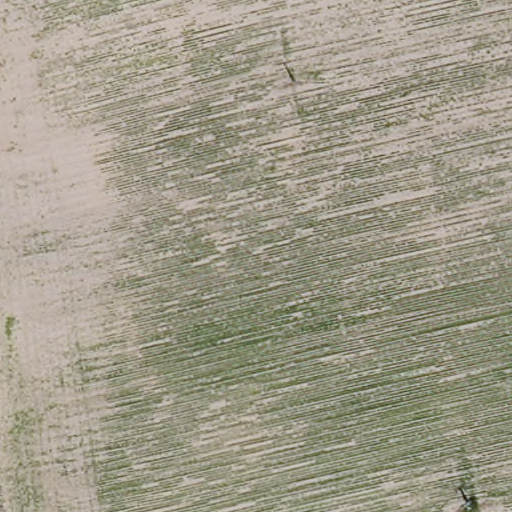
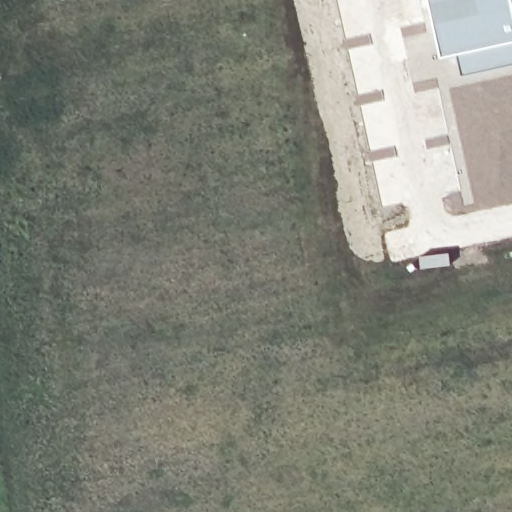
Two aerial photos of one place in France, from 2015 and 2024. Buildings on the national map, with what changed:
new [(455,53),(440,56),(428,0),(512,0),(512,64),(460,76),(455,53)]

